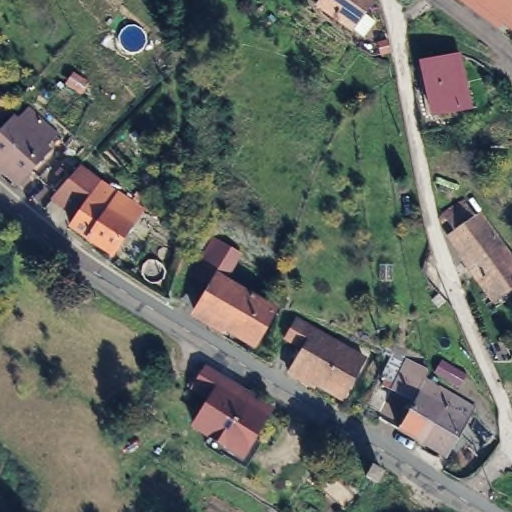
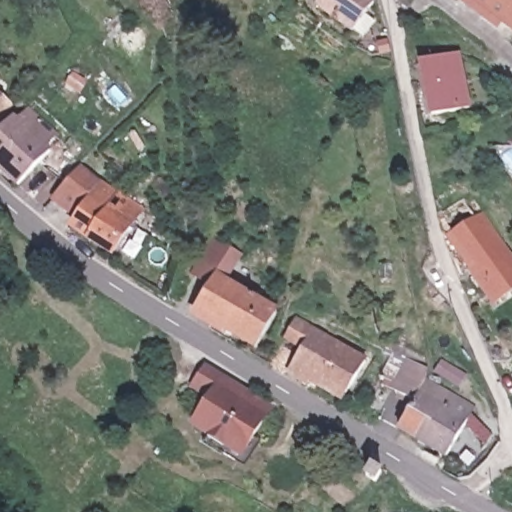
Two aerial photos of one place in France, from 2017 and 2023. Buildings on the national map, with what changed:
unchanged [(367,19),(362,27),(355,21),(352,24),(320,0),(370,0),(360,13),(367,19)]
unchanged [(512,0),(512,29),(474,0),(512,0)]
unchanged [(455,53),(467,106),(430,115),(418,61),(455,53)]
unchanged [(0,98),(9,106),(4,111),(0,116),(0,98)]
unchanged [(37,149),(44,157),(13,189),(0,175),(0,130),(7,121),(11,124),(24,112),(49,136),(37,149)]
unchanged [(106,183),(81,222),(54,203),(86,169),(106,183)]
unchanged [(81,222),(106,183),(122,195),(145,211),(115,253),(77,228),(81,222)]
unchanged [(497,304),(474,270),(478,264),(459,234),(460,232),(449,217),(467,204),(479,218),(485,215),(512,254),(512,294),(497,304)]
unchanged [(269,309),(250,341),(190,305),(210,272),(269,309)]
unchanged [(364,360),(342,397),(314,380),(311,383),(292,371),(293,369),(291,366),(302,347),(287,337),(295,320),(364,360)]
unchanged [(394,434),(410,407),(391,396),(394,389),(377,380),(389,359),(383,355),(384,338),(424,363),(425,386),(448,399),(418,447),(394,434)]
unchanged [(190,426),(214,386),(219,378),(267,407),(262,415),(239,454),(190,426)]
unchanged [(448,399),(472,411),(443,461),(418,447),(448,399)]

